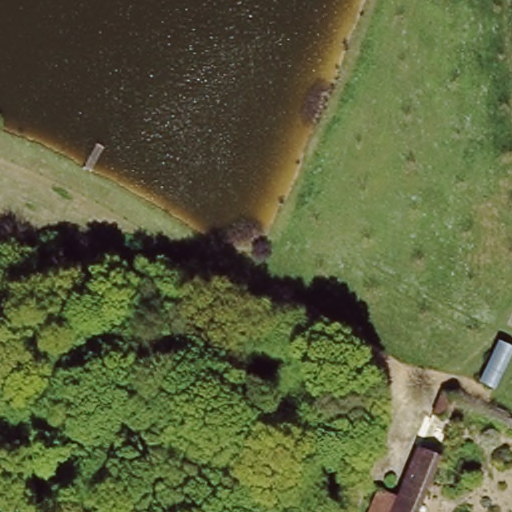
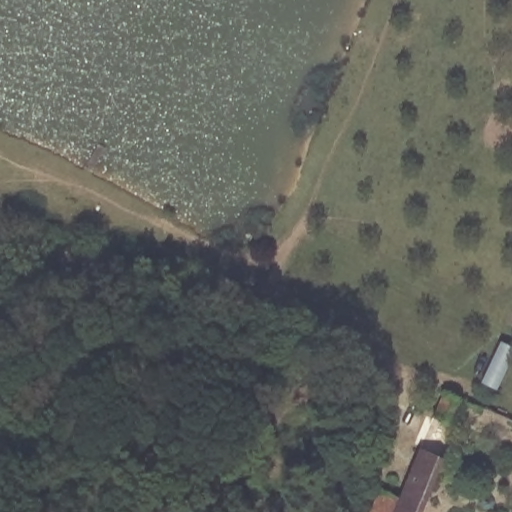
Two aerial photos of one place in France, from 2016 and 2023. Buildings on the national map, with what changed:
unchanged [(453,401),(444,424),(427,418),(436,394),(453,401)]
unchanged [(413,452),(438,460),(417,512),(387,512),(413,452)]

